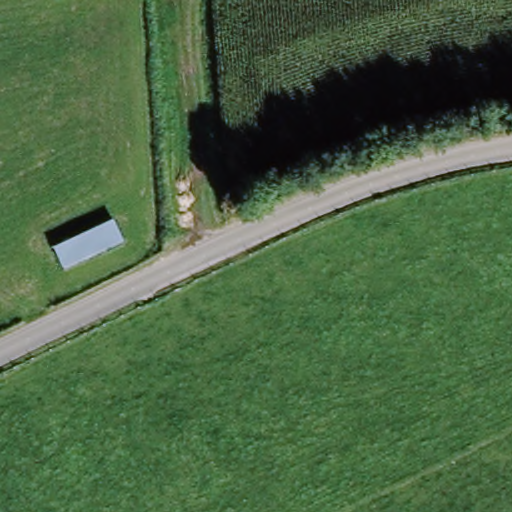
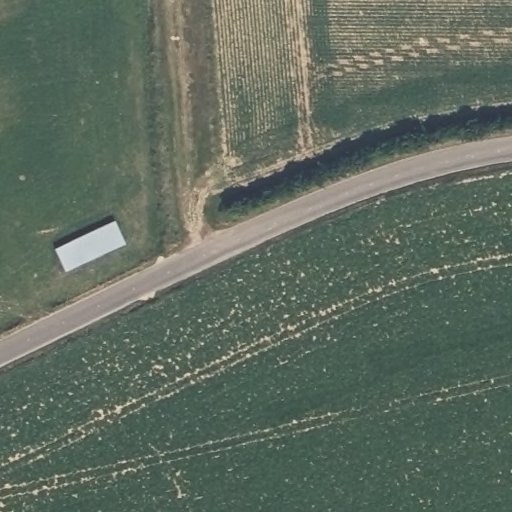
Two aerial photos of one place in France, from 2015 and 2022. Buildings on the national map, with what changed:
unchanged [(122,240),(65,265),(56,244),(113,219),(122,240)]

